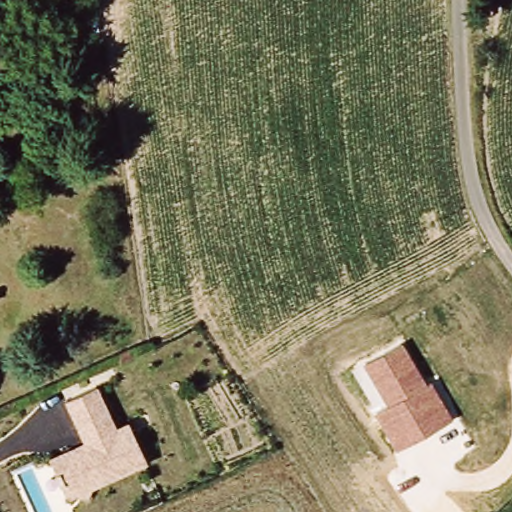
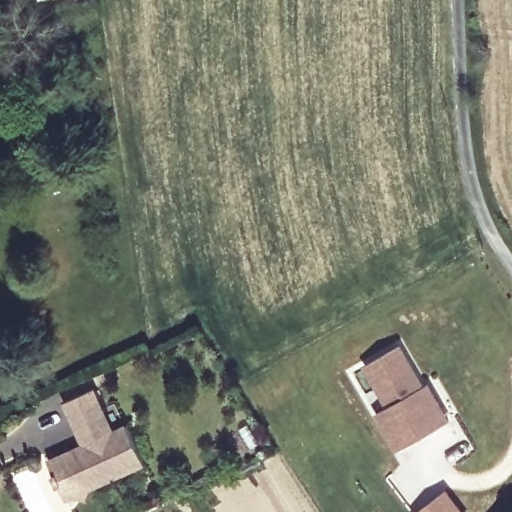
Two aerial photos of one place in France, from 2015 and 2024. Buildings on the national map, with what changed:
unchanged [(426,386),(431,382),(452,419),(395,452),(373,414),(387,407),(363,366),(401,343),(426,386)]
unchanged [(115,428),(127,423),(145,463),(66,498),(50,457),(83,442),(65,402),(97,387),(115,428)]
new [(418,512),(446,489),(465,512),(418,512)]

